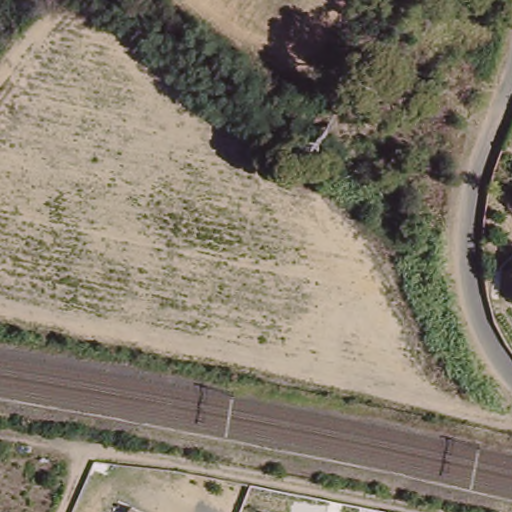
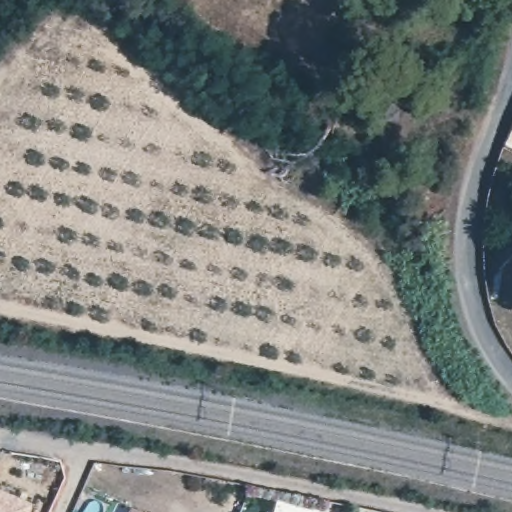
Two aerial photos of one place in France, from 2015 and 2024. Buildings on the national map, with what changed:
new [(34,505),(30,512),(0,512),(0,489),(34,505)]
unchanged [(133,508),(131,512),(114,512),(119,502),(133,508)]
unchanged [(139,512),(131,512),(133,508),(139,512)]

